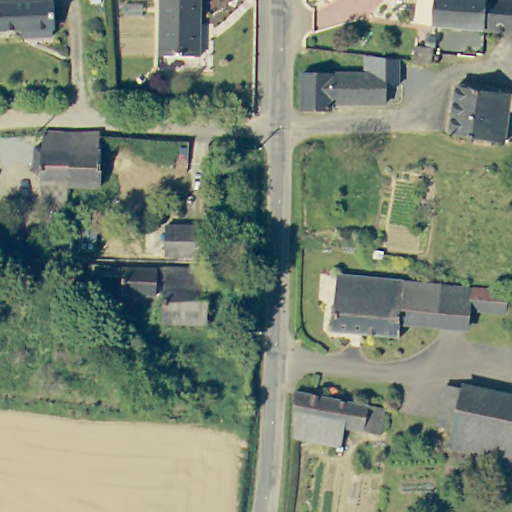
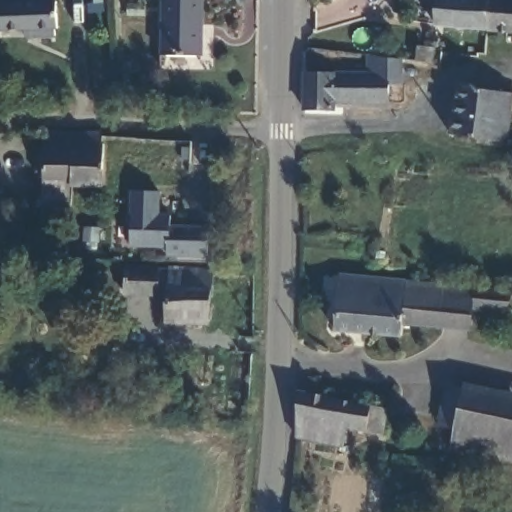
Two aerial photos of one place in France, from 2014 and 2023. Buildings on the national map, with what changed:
unchanged [(39,37),(39,29),(7,30),(6,3),(7,3),(7,0),(54,0),(54,2),(62,1),(63,28),(60,29),(60,36),(39,37)]
unchanged [(201,50),(162,51),(161,0),(198,0),(201,50)]
unchanged [(442,24),(442,0),(512,0),(512,29),(492,28),(442,24)]
unchanged [(328,97),(326,105),(300,108),(299,69),(341,71),(361,72),(394,74),(395,88),(395,98),(328,97)]
unchanged [(507,97),(512,98),(512,125),(510,137),(456,129),(464,81),(509,88),(507,97)]
unchanged [(44,196),(45,165),(47,131),(71,132),(98,133),(98,143),(98,180),(70,179),(69,194),(44,196)]
new [(168,251),(130,247),(113,244),(114,223),(129,223),(129,191),(162,193),(160,219),(170,221),(168,251)]
unchanged [(212,223),(211,253),(168,251),(170,221),(212,223)]
unchanged [(160,296),(126,295),(126,270),(160,271),(160,296)]
unchanged [(174,272),(210,274),(209,320),(167,320),(167,271),(174,272)]
unchanged [(337,326),(342,274),(372,278),(366,330),(337,326)]
unchanged [(372,278),(445,286),(442,327),(401,322),(400,333),(366,330),(372,278)]
unchanged [(469,330),(442,327),(445,286),(474,290),(469,330)]
unchanged [(511,294),(507,335),(469,330),(474,290),(511,294)]
unchanged [(293,386),(387,414),(383,436),(362,432),(337,424),(332,438),(292,424),(293,409),(293,386)]
unchanged [(506,454),(449,443),(451,427),(434,422),(440,388),(511,400),(506,454)]
unchanged [(512,455),(506,454),(511,400),(512,400),(512,455)]

